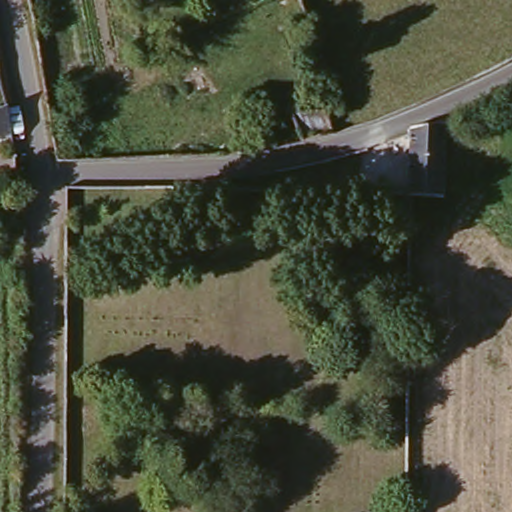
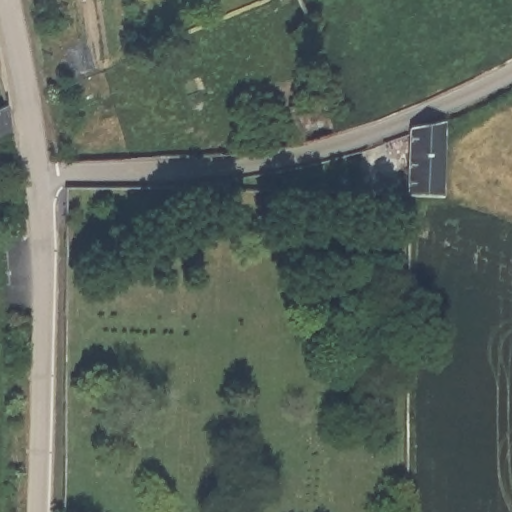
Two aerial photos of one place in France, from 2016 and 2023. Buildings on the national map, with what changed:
unchanged [(0,108),(8,104),(13,135),(0,140),(0,108)]
unchanged [(457,198),(422,198),(422,195),(423,133),(424,127),(459,122),(457,198)]

